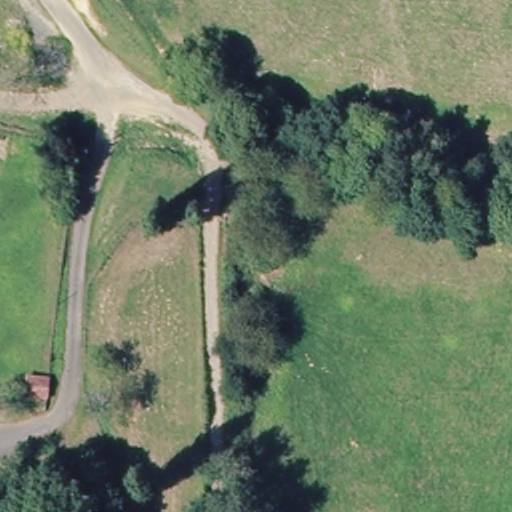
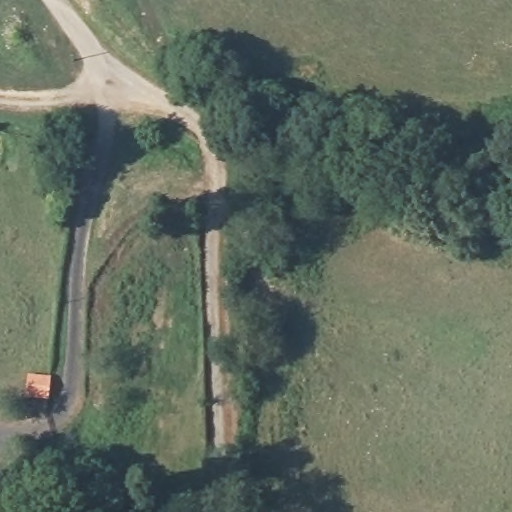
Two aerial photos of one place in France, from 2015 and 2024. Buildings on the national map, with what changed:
unchanged [(23,406),(26,386),(46,388),(43,410),(23,406)]

